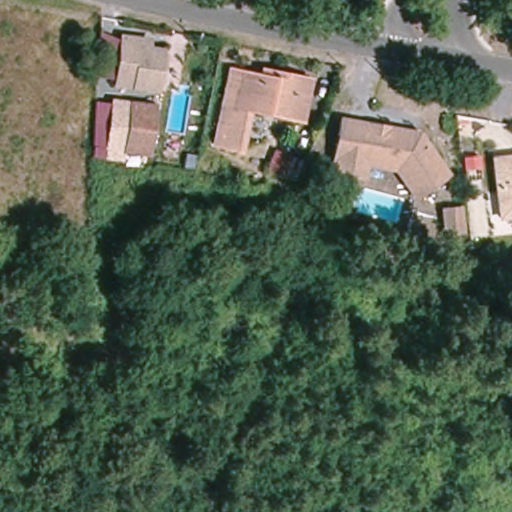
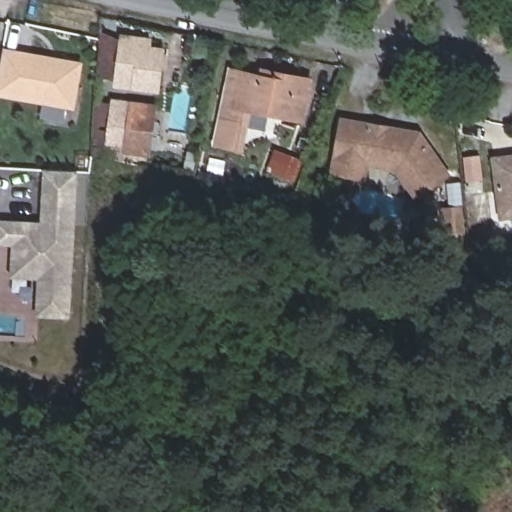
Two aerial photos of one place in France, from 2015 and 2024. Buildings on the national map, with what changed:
unchanged [(148,48),(162,50),(157,91),(116,84),(124,36),(149,40),(148,48)]
new [(82,61),(74,109),(0,96),(0,73),(4,48),(82,61)]
unchanged [(231,76),(262,83),(263,77),(310,86),(302,125),(246,113),(238,154),(216,149),(231,76)]
unchanged [(132,104),(155,106),(148,154),(126,151),(111,149),(114,133),(109,132),(111,114),(131,116),(132,104)]
unchanged [(415,205),(390,173),(370,170),(367,183),(332,179),(334,162),(330,160),(335,118),(420,130),(453,176),(415,205)]
unchanged [(301,161),(295,180),(268,171),(276,151),(301,161)]
unchanged [(500,222),(490,157),(512,154),(512,220),(500,222)]
unchanged [(466,185),(462,159),(478,156),(482,181),(466,185)]
new [(77,171),(70,318),(35,316),(36,279),(9,278),(11,246),(0,245),(0,219),(40,221),(42,169),(77,171)]
unchanged [(466,233),(442,238),(437,211),(460,207),(466,233)]

